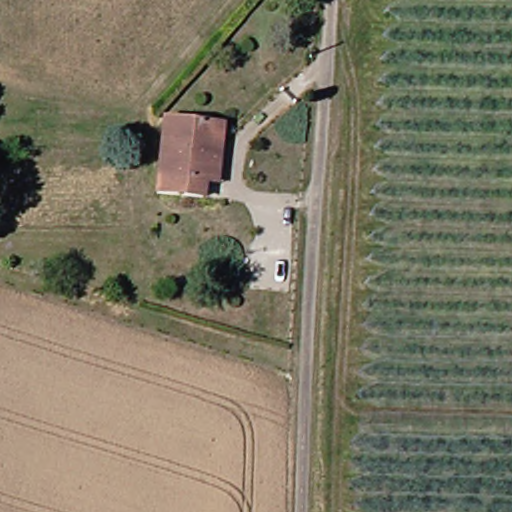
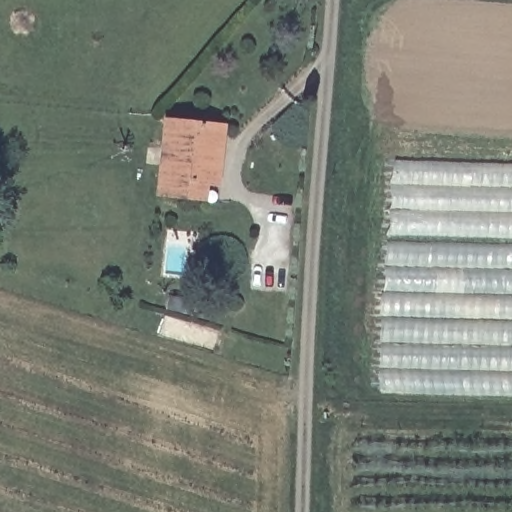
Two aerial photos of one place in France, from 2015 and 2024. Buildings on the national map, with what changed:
unchanged [(205,183),(204,196),(158,193),(165,122),(223,127),(221,149),(219,184),(205,183)]
new [(394,161),(512,165),(512,395),(380,391),(394,161)]

